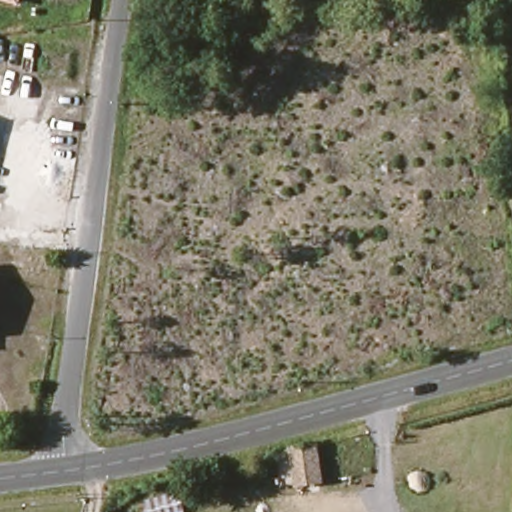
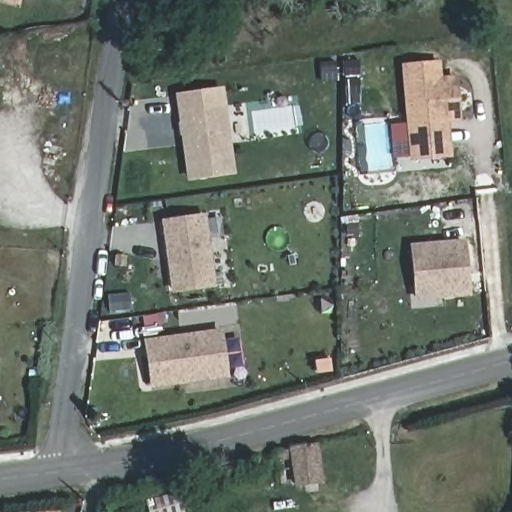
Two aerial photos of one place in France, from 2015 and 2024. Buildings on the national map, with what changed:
unchanged [(20,5),(0,0),(21,0),(20,5)]
new [(411,161),(402,63),(442,60),(443,75),(458,74),(462,121),(450,122),(453,156),(411,161)]
new [(189,181),(176,93),(225,86),(238,173),(189,181)]
new [(172,293),(162,220),(207,214),(218,287),(172,293)]
new [(417,301),(411,243),(466,238),(472,296),(417,301)]
new [(152,385),(147,341),(222,331),(228,375),(152,385)]
unchanged [(325,441),(331,485),(293,492),(290,472),(286,452),(285,444),(325,441)]
new [(183,511),(182,512),(149,512),(146,502),(179,493),(183,511)]

